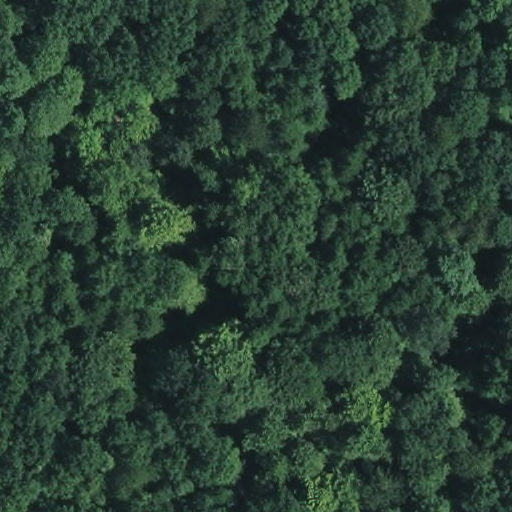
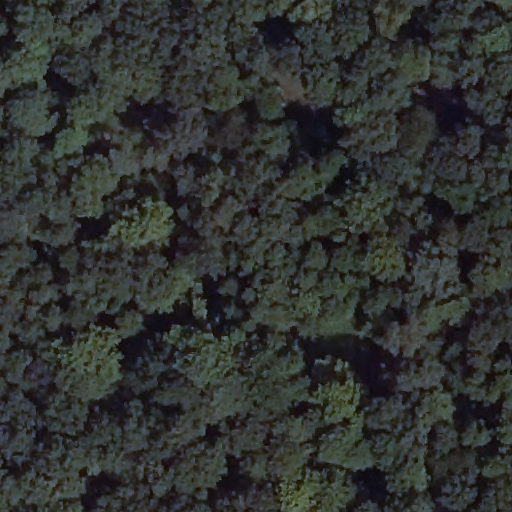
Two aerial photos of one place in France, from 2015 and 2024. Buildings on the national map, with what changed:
[]

